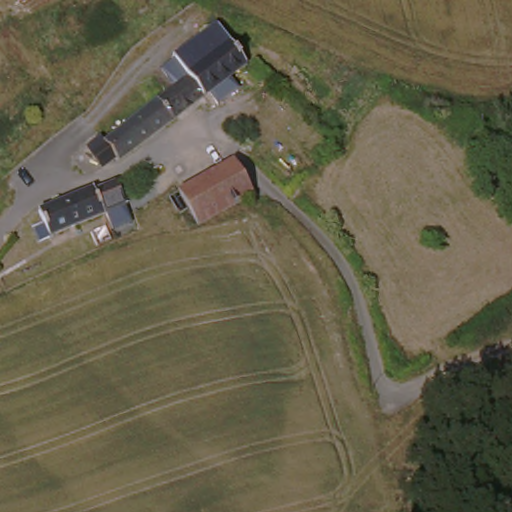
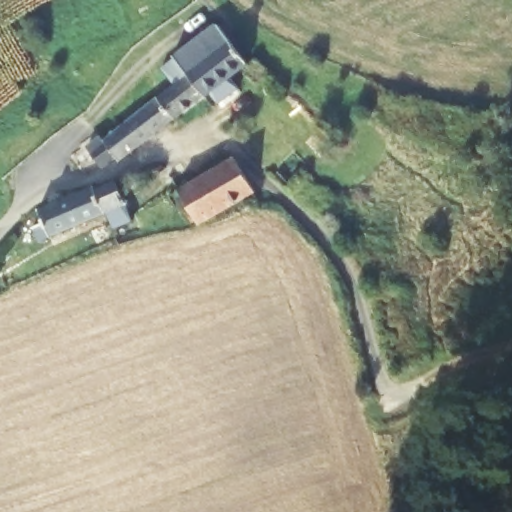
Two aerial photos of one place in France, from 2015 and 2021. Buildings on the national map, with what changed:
unchanged [(245,70),(117,169),(100,147),(185,82),(172,64),(215,30),(245,70)]
unchanged [(227,164),(248,200),(192,233),(171,197),(227,164)]
unchanged [(41,222),(36,211),(92,188),(94,191),(114,183),(124,208),(39,244),(32,229),(41,222)]
unchanged [(270,207),(260,212),(255,207),(263,200),(270,207)]

